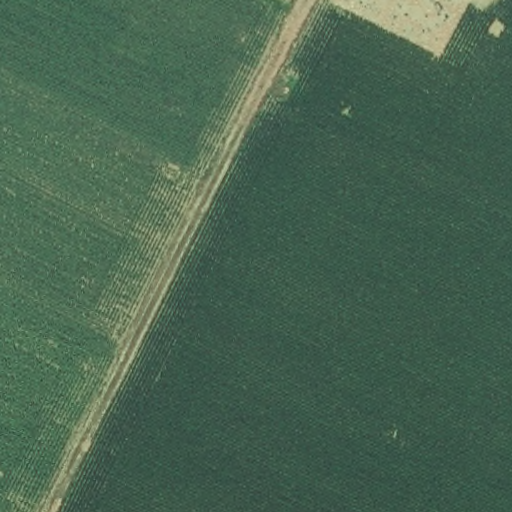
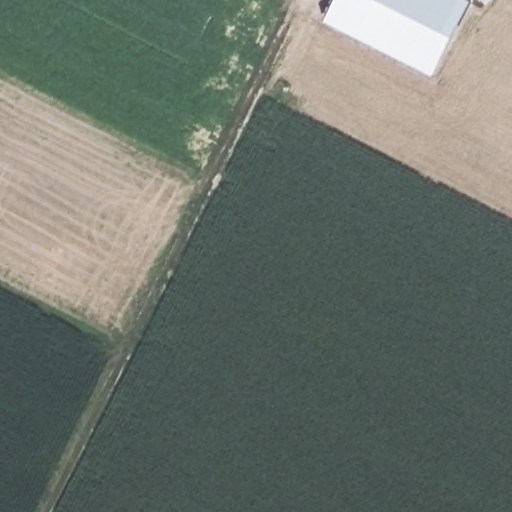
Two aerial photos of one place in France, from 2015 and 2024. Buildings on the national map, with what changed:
new [(340,0),(466,0),(474,4),(436,80),(328,25),(340,0)]

